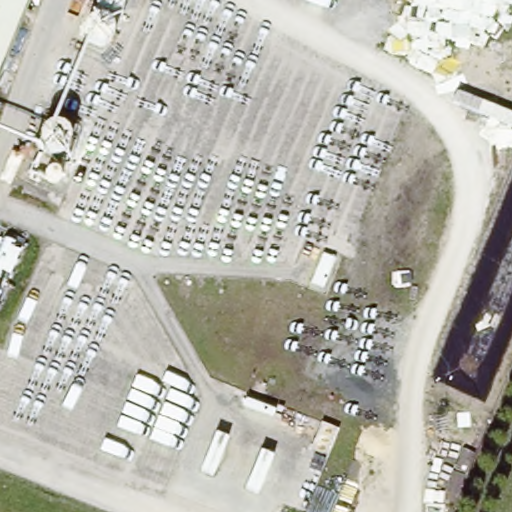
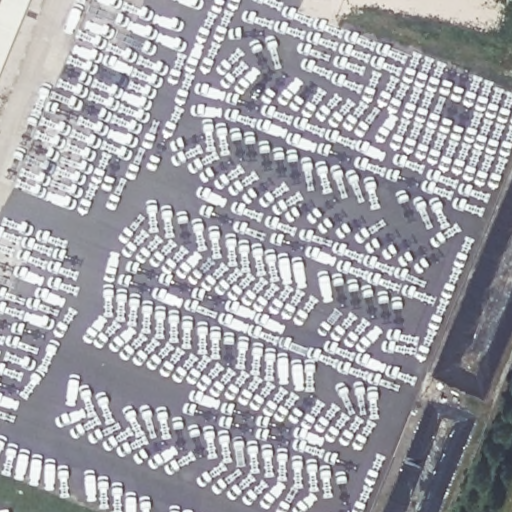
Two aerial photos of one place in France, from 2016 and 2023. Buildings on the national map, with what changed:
unchanged [(0,0),(30,0),(0,74),(0,0)]

